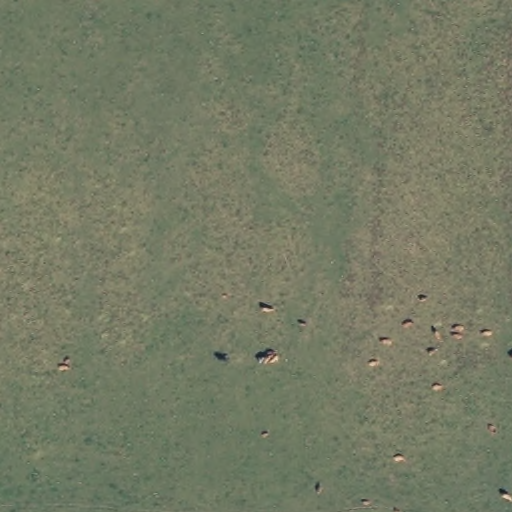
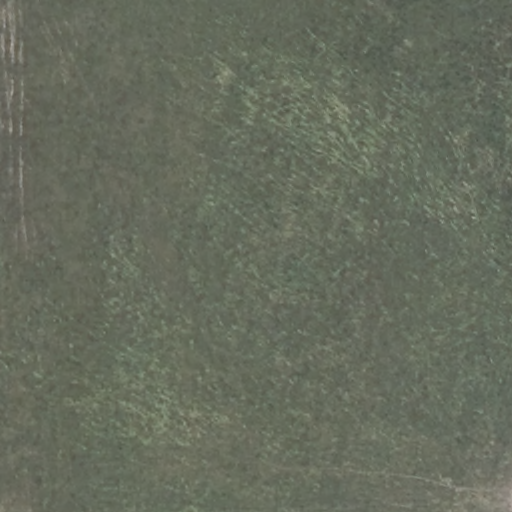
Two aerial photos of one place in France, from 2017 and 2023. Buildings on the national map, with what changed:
[]

